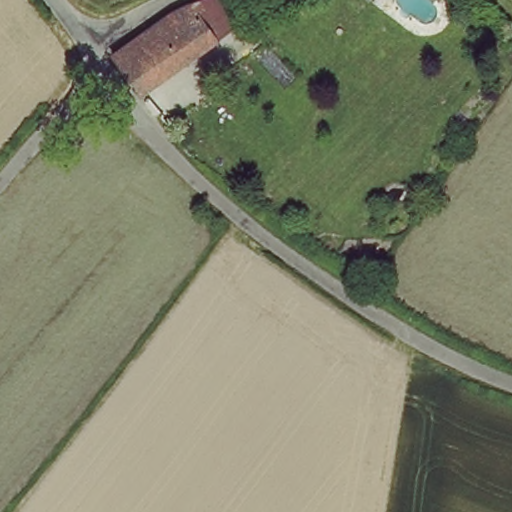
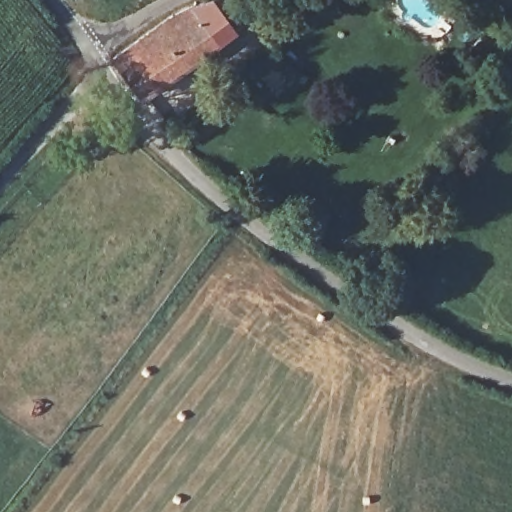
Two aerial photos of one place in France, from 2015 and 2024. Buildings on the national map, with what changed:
unchanged [(147,91),(121,58),(183,13),(193,10),(215,2),(235,34),(220,44),(147,91)]

